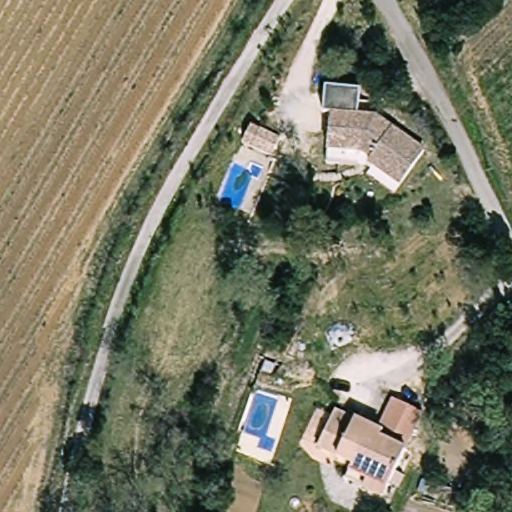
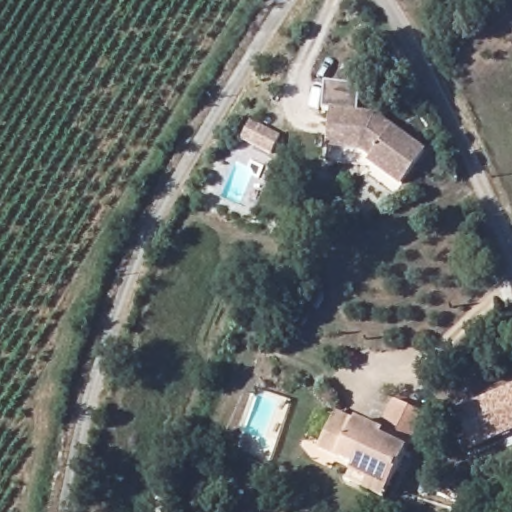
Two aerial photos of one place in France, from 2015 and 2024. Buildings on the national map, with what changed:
unchanged [(255,101),(278,122),(265,136),(242,114),(255,101)]
unchanged [(383,117),(430,157),(402,187),(372,160),(375,156),(363,146),(347,141),(330,135),(333,124),(340,102),(383,117)]
new [(456,411),(512,385),(512,431),(471,447),(456,411)]
unchanged [(340,397),(358,411),(380,427),(374,433),(385,442),(413,411),(440,432),(413,463),(382,502),(342,470),(345,466),(326,451),(308,437),(340,397)]

